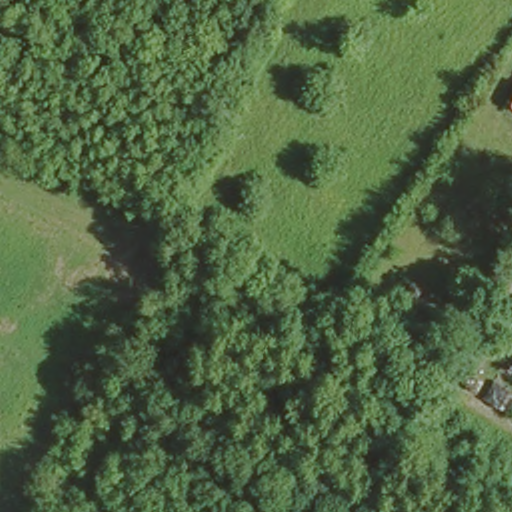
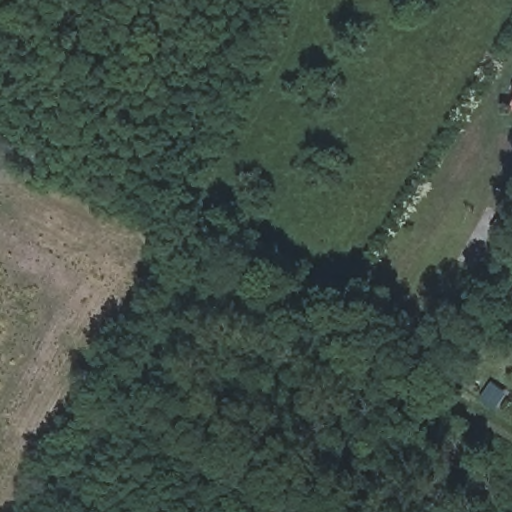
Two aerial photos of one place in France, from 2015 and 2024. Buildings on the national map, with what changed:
unchanged [(512,92),(512,106),(506,102),(512,92)]

